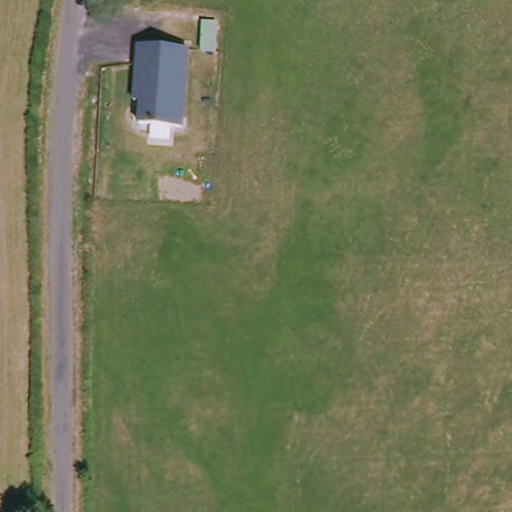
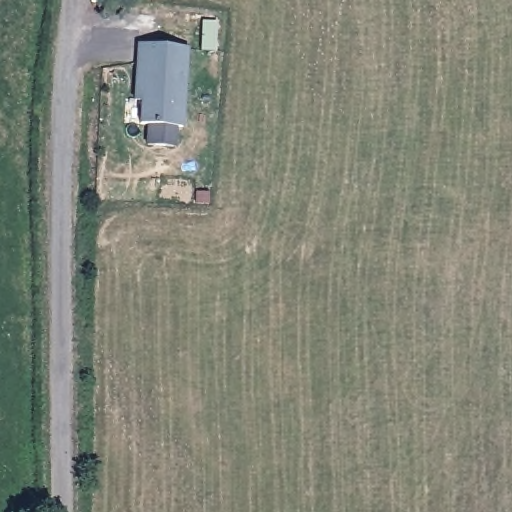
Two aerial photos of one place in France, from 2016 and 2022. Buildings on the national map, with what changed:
unchanged [(140,101),(133,100),(137,43),(188,47),(183,126),(138,124),(140,101)]

